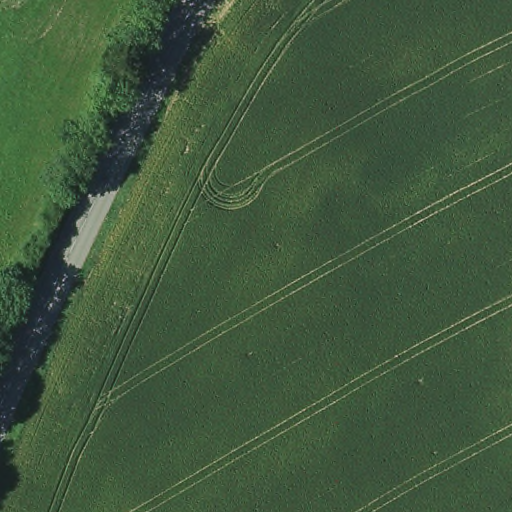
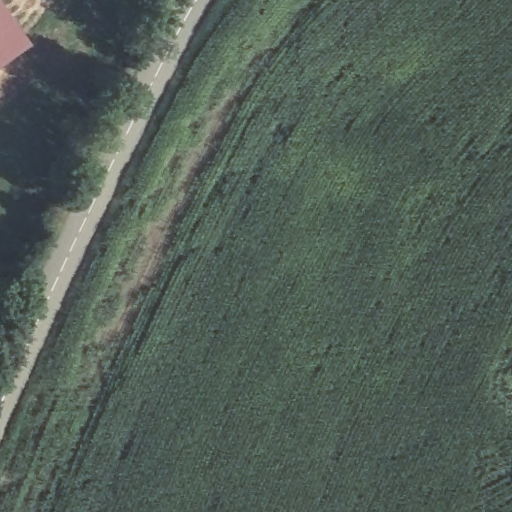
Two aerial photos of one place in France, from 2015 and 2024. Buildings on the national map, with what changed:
new [(0,66),(0,3),(30,43),(0,66)]

